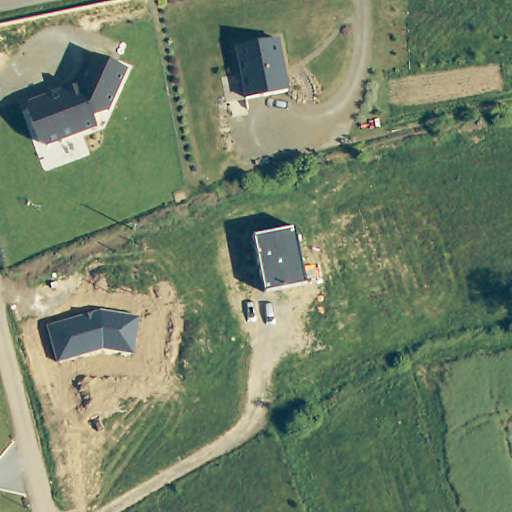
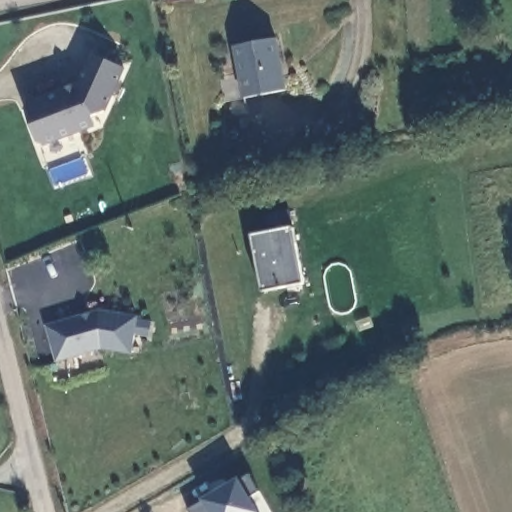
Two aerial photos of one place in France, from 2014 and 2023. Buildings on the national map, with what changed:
unchanged [(243,99),(234,47),(279,38),(288,92),(243,99)]
unchanged [(109,112),(92,115),(98,129),(46,147),(37,142),(25,111),(28,101),(74,85),(87,53),(128,70),(109,112)]
unchanged [(305,285),(264,293),(252,236),(293,228),(305,285)]
unchanged [(135,355),(101,349),(56,362),(46,325),(101,310),(141,317),(135,355)]
new [(250,495),(259,512),(191,512),(189,508),(201,500),(240,477),(251,473),(261,490),(250,495)]

